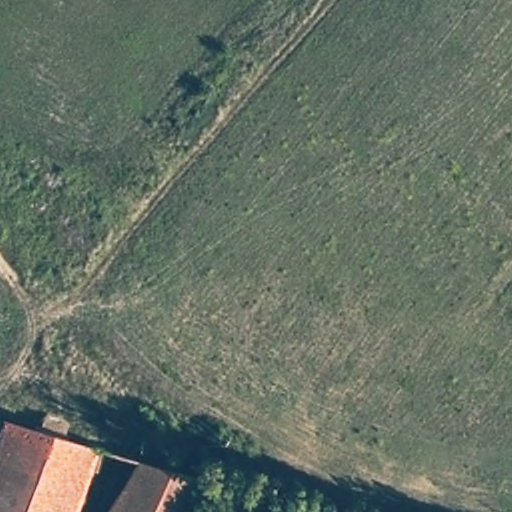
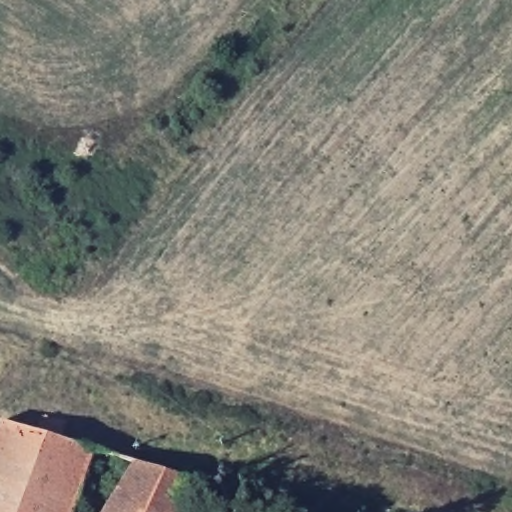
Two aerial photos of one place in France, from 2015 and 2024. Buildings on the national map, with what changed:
unchanged [(90,450),(69,512),(0,512),(0,420),(90,450)]
unchanged [(102,512),(135,460),(198,482),(189,512),(102,512)]

